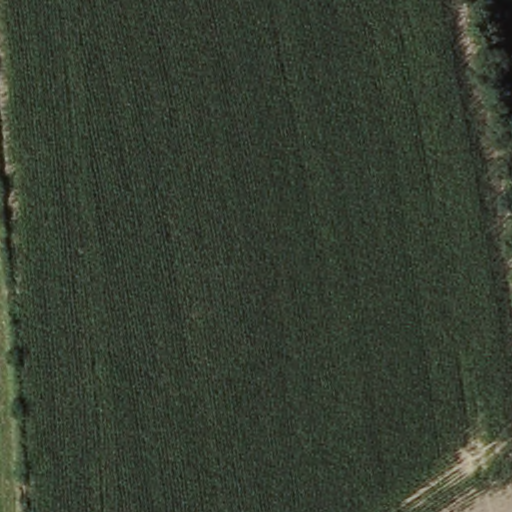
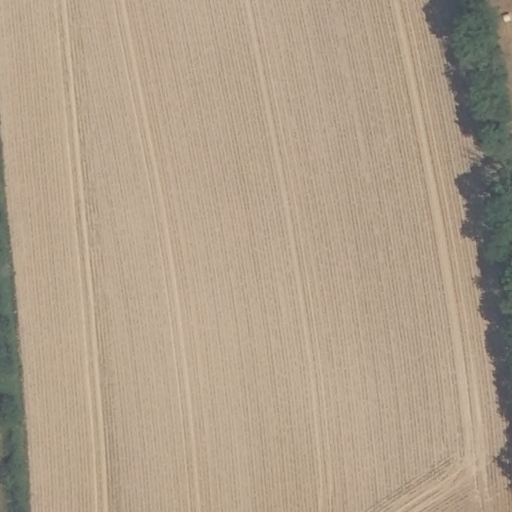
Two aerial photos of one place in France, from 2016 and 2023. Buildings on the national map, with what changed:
[]

